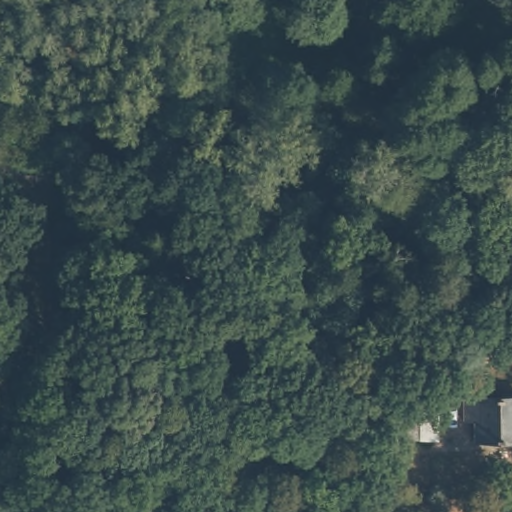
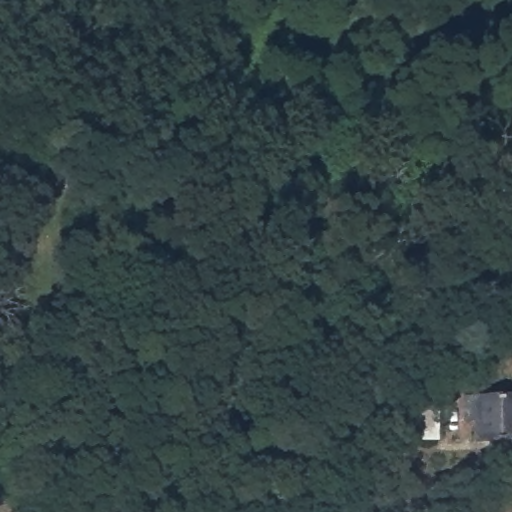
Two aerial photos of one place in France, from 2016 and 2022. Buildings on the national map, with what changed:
unchanged [(476,212),(477,193),(491,195),(488,214),(476,212)]
unchanged [(481,418),(481,397),(506,396),(507,393),(512,393),(512,438),(478,438),(477,418),(481,418)]
unchanged [(438,399),(439,439),(409,438),(410,398),(438,399)]
unchanged [(358,423),(358,435),(347,435),(348,423),(358,423)]

